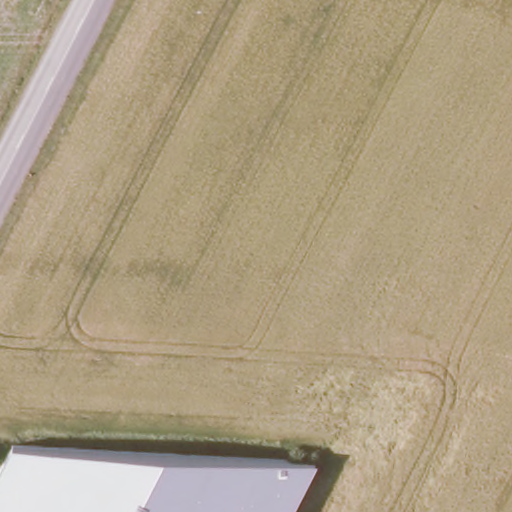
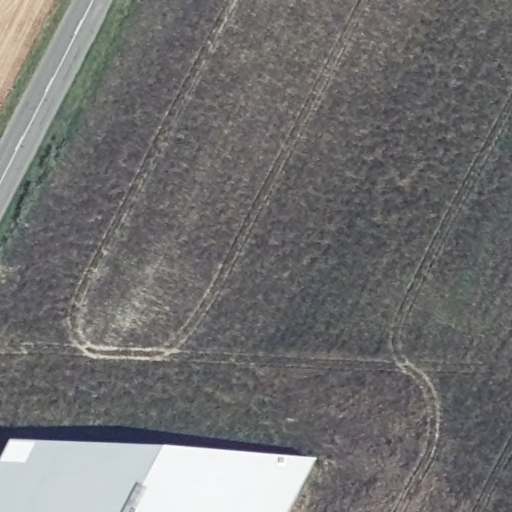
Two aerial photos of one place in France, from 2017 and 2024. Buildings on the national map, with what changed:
unchanged [(289,512),(0,512),(0,454),(5,443),(315,461),(289,512)]

